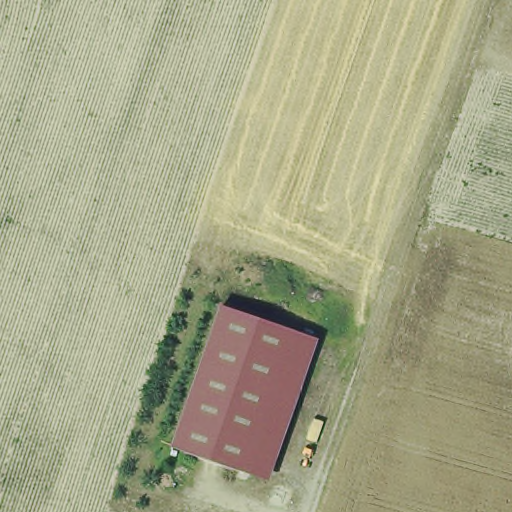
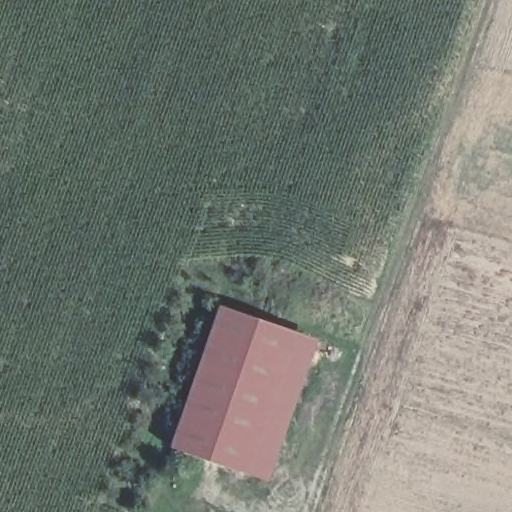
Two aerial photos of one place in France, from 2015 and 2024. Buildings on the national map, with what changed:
unchanged [(222,306),(300,332),(250,475),(173,448),(222,306)]

